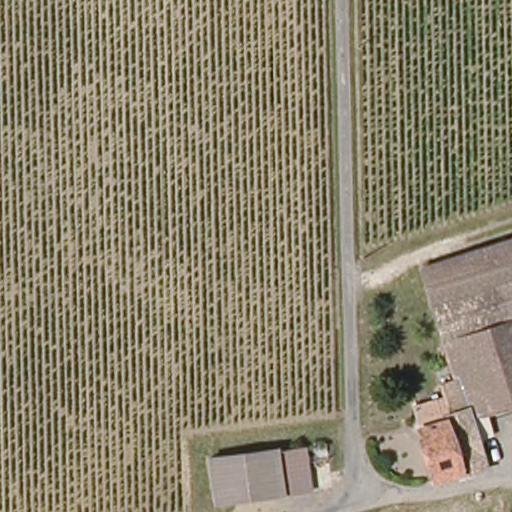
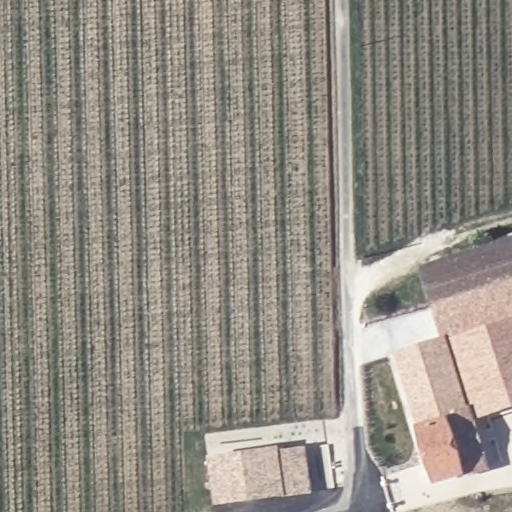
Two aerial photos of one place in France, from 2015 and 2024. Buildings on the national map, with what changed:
unchanged [(434,306),(421,269),(512,239),(512,280),(479,291),(434,306)]
unchanged [(512,280),(512,387),(479,291),(512,280)]
unchanged [(512,387),(512,404),(472,417),(455,367),(434,306),(479,291),(512,387)]
new [(455,367),(440,372),(446,393),(441,395),(446,409),(415,419),(395,351),(444,336),(455,367)]
unchanged [(446,409),(441,395),(446,393),(440,372),(455,367),(472,417),(488,474),(432,487),(415,419),(446,409)]
unchanged [(318,447),(322,492),(224,504),(219,457),(318,447)]

